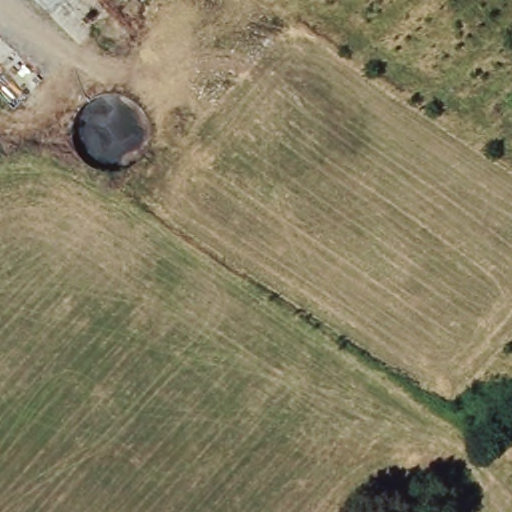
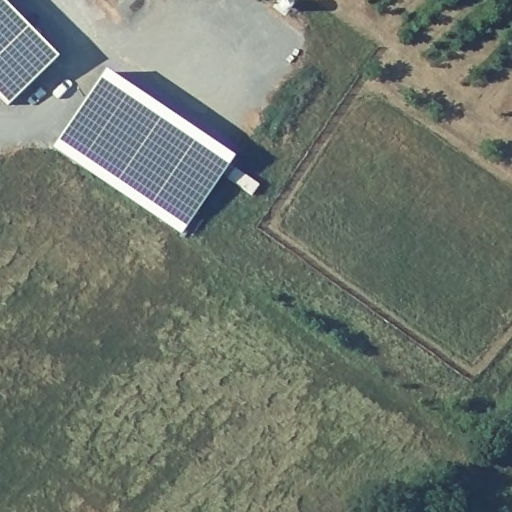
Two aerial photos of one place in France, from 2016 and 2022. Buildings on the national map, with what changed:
new [(6,106),(0,100),(0,3),(55,59),(6,106)]
new [(102,71),(231,160),(180,237),(50,149),(102,71)]

